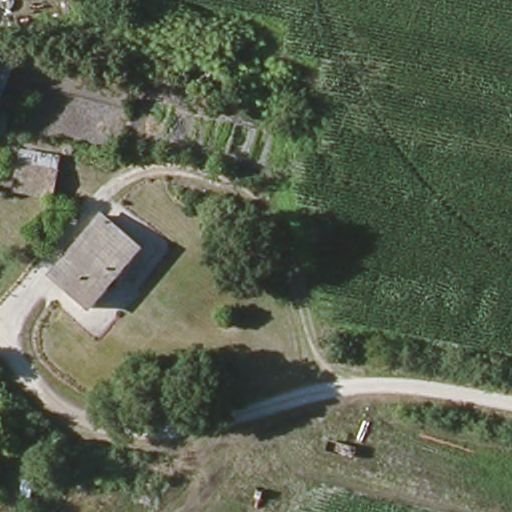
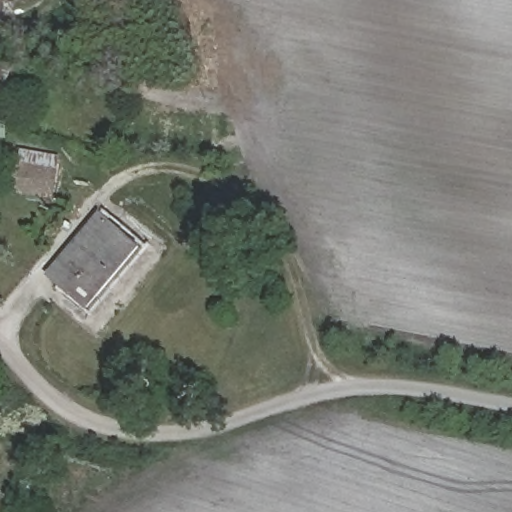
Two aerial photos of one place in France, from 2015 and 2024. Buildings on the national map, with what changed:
unchanged [(0,101),(0,53),(19,61),(0,101)]
unchanged [(0,131),(0,106),(13,110),(9,132),(0,131)]
unchanged [(50,202),(10,194),(22,145),(64,152),(50,202)]
unchanged [(95,319),(41,274),(95,210),(150,255),(95,319)]

